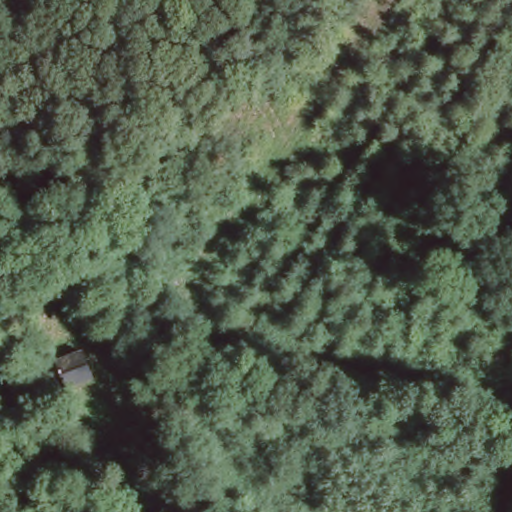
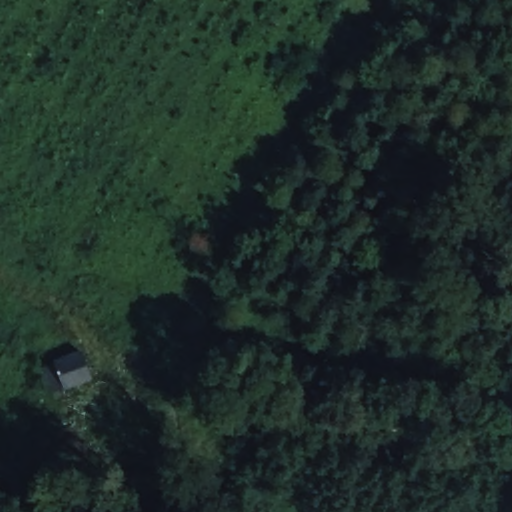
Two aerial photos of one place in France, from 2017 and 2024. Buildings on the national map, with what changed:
unchanged [(39,365),(55,358),(80,350),(90,378),(65,388),(50,394),(39,365)]

